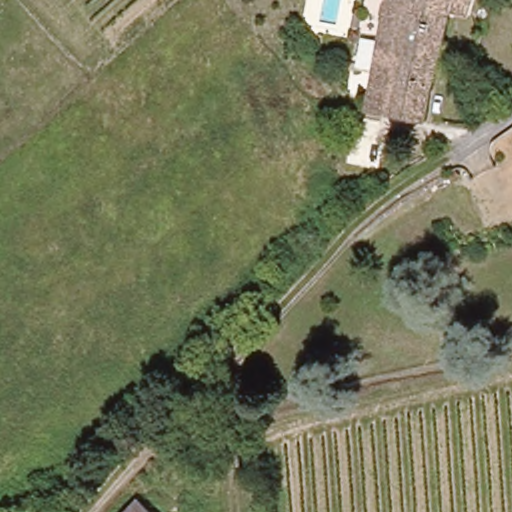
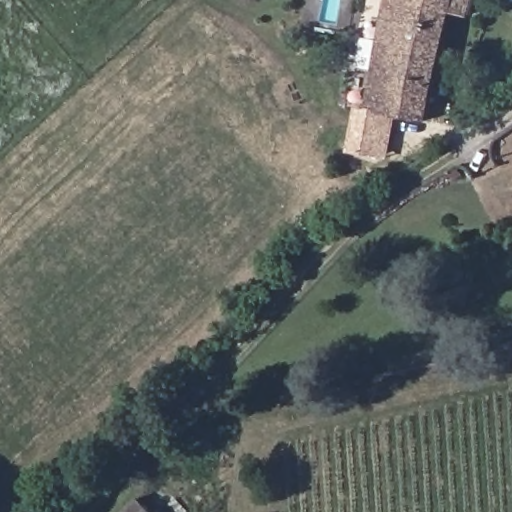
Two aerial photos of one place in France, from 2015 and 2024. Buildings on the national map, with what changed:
unchanged [(447,11),(431,82),(423,119),(364,109),(371,71),(374,58),(375,48),(383,0),(475,0),(472,17),(447,11)]
new [(396,114),(388,159),(347,151),(354,108),(364,109),(396,114)]
unchanged [(443,170),(454,164),(461,173),(451,179),(443,170)]
unchanged [(141,498),(156,512),(128,512),(141,498)]

